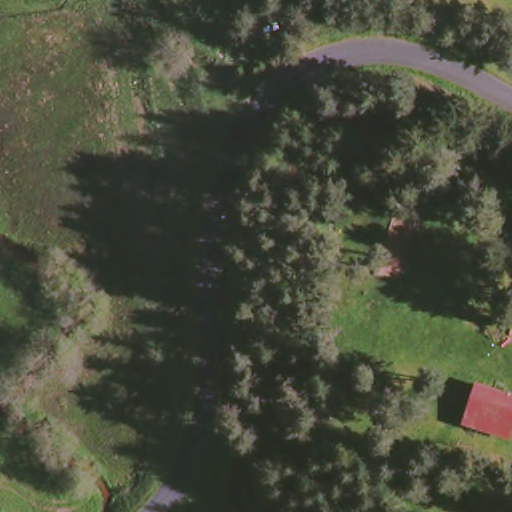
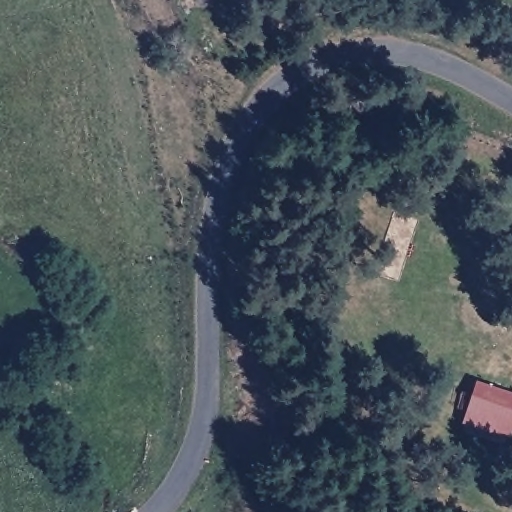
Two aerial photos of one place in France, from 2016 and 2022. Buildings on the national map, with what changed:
unchanged [(474,378),(512,392),(512,415),(507,429),(488,439),(457,429),(474,378)]

